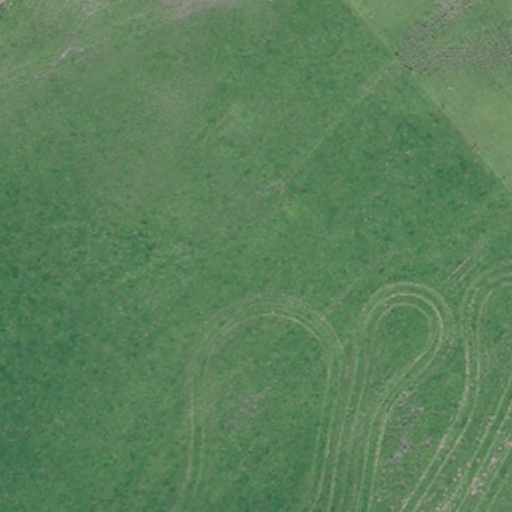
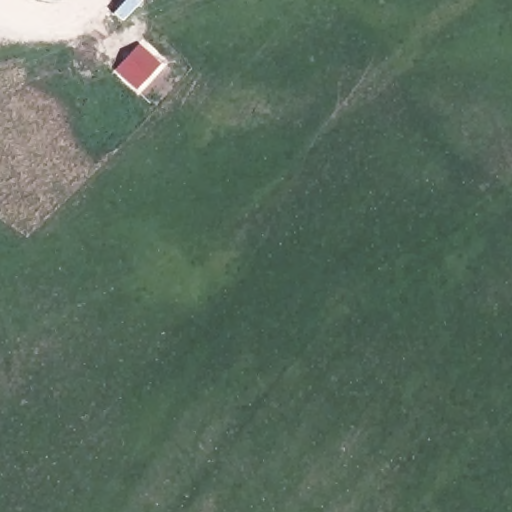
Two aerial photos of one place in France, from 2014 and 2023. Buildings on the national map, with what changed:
new [(140,45),(162,63),(138,90),(117,70),(140,45)]

